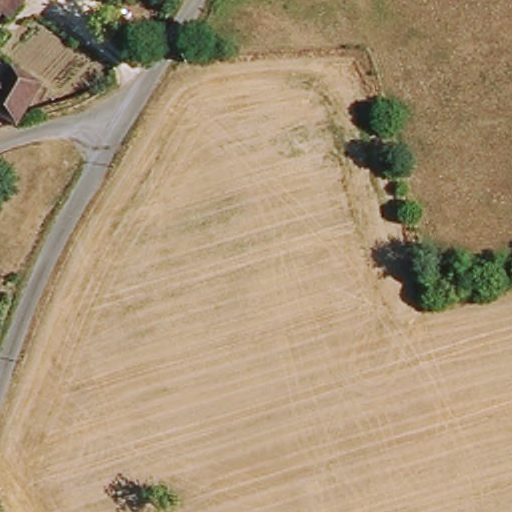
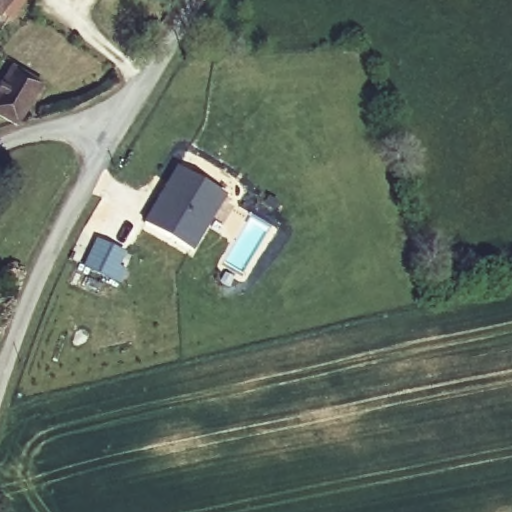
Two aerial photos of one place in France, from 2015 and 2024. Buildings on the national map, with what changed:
unchanged [(0,5),(0,0),(17,0),(8,11),(0,5)]
unchanged [(14,69),(44,87),(20,126),(0,114),(0,92),(14,69)]
new [(177,162),(227,195),(193,250),(141,221),(177,162)]
new [(95,236),(128,251),(125,259),(129,261),(120,283),(81,265),(95,236)]

